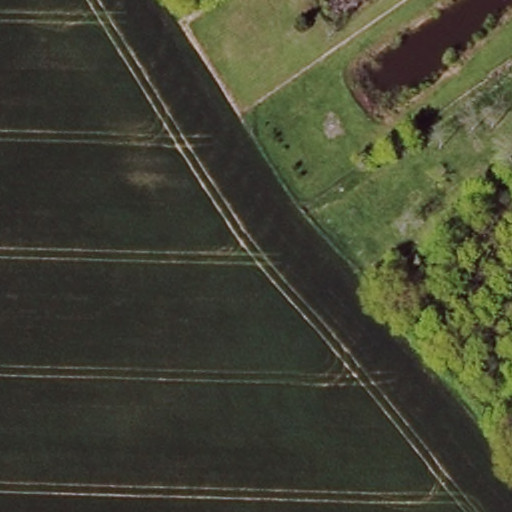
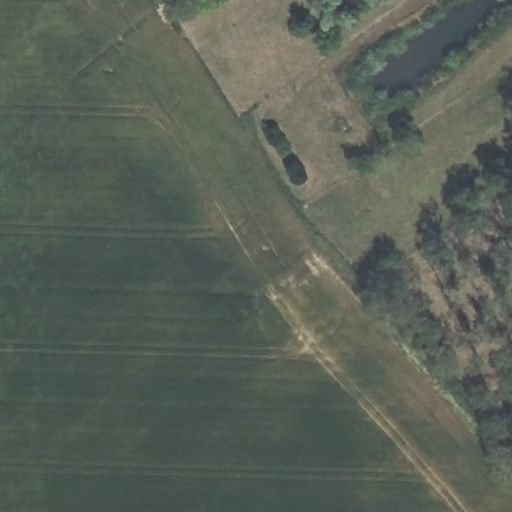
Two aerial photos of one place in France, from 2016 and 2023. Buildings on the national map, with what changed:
[]

